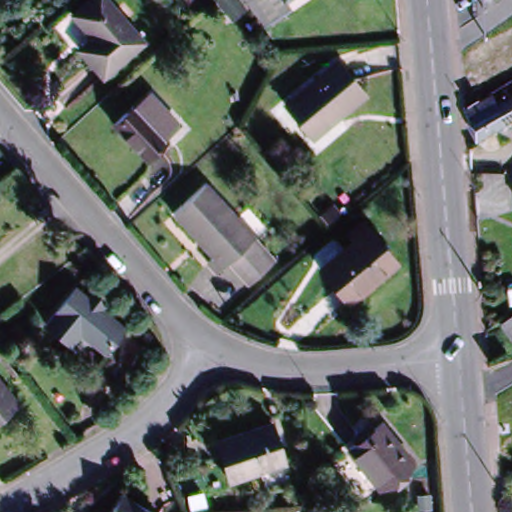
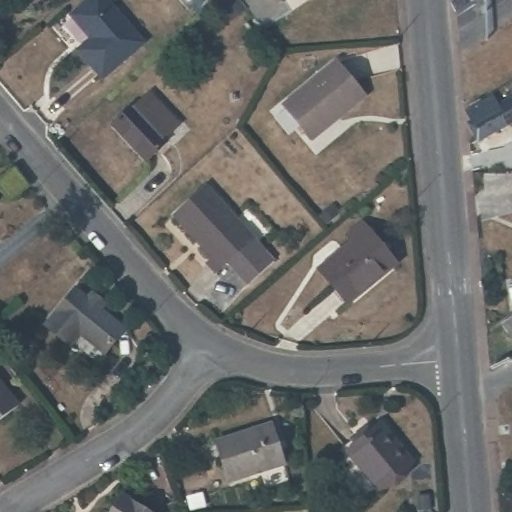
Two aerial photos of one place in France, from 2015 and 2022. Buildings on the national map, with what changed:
unchanged [(97,78),(73,51),(85,40),(65,17),(87,0),(99,0),(138,43),(97,78)]
unchanged [(252,5),(236,16),(223,0),(248,0),(252,5)]
unchanged [(296,8),(269,25),(251,0),(291,0),(296,8)]
unchanged [(305,140),(278,106),(330,62),(359,96),(305,140)]
unchanged [(466,125),(472,122),(467,112),(493,97),(499,107),(512,99),(512,123),(476,144),(466,125)]
unchanged [(145,161),(112,125),(132,107),(165,144),(145,161)]
unchanged [(0,187),(0,181),(14,171),(26,185),(22,189),(10,199),(0,187)]
unchanged [(269,261),(243,285),(230,272),(223,264),(211,275),(200,263),(207,258),(168,216),(199,187),(269,261)]
unchanged [(346,308),(319,276),(354,248),(347,240),(361,229),(367,236),(394,268),(346,308)]
unchanged [(99,354),(74,334),(64,347),(39,327),(70,290),(82,300),(87,293),(98,303),(94,309),(119,330),(99,354)]
unchanged [(512,317),(512,337),(503,324),(512,317)]
unchanged [(0,384),(18,408),(0,421),(0,384)]
unchanged [(224,482),(210,442),(266,425),(279,465),(224,482)]
unchanged [(373,492),(340,453),(375,425),(407,465),(373,492)]
unchanged [(138,512),(113,512),(120,501),(138,512)]

